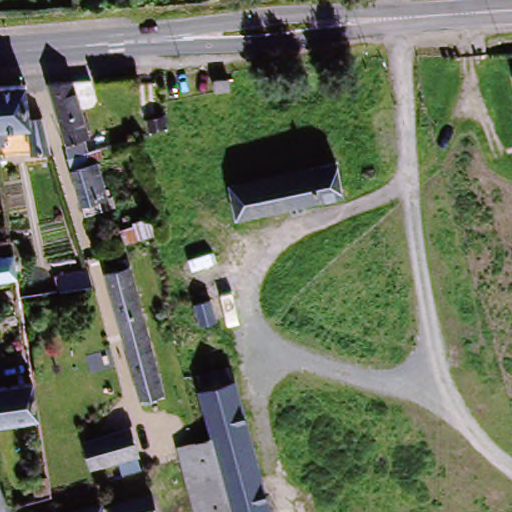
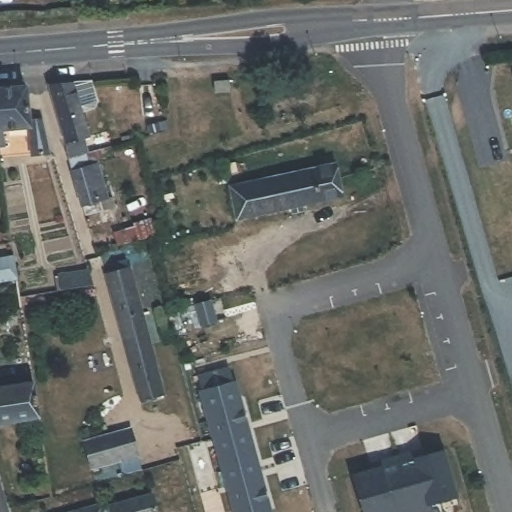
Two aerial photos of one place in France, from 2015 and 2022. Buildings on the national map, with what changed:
unchanged [(48,79),(75,77),(93,147),(65,150),(48,79)]
unchanged [(0,130),(0,88),(23,86),(28,128),(0,130)]
unchanged [(49,139),(45,140),(47,152),(32,154),(28,128),(46,127),(49,139)]
unchanged [(2,155),(0,155),(0,135),(2,155)]
unchanged [(93,147),(106,197),(78,204),(65,150),(93,147)]
unchanged [(335,164),(342,192),(241,214),(235,187),(335,164)]
unchanged [(10,257),(13,282),(0,284),(0,258),(10,257)]
unchanged [(106,275),(112,273),(110,265),(125,261),(160,397),(141,402),(106,275)]
unchanged [(90,267),(92,278),(58,285),(57,273),(90,267)]
unchanged [(213,301),(218,321),(202,323),(198,306),(213,301)]
unchanged [(203,447),(215,443),(197,375),(225,367),(263,512),(222,512),(203,447)]
unchanged [(0,407),(0,391),(31,383),(36,419),(4,427),(0,407)]
unchanged [(129,431),(135,452),(92,467),(85,445),(129,431)]
unchanged [(180,455),(202,448),(203,447),(222,512),(195,512),(180,455)]
new [(415,451),(417,457),(444,450),(456,495),(429,502),(431,508),(415,512),(413,512),(397,456),(415,451)]
new [(380,467),(379,461),(397,456),(413,512),(393,512),(365,512),(354,474),(380,467)]
unchanged [(99,502),(100,506),(146,492),(152,512),(63,512),(99,502)]

